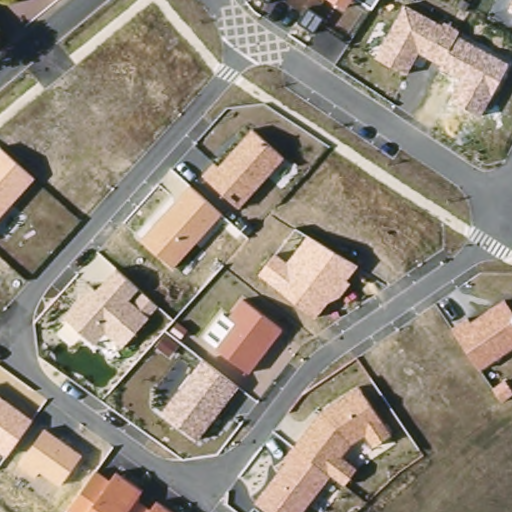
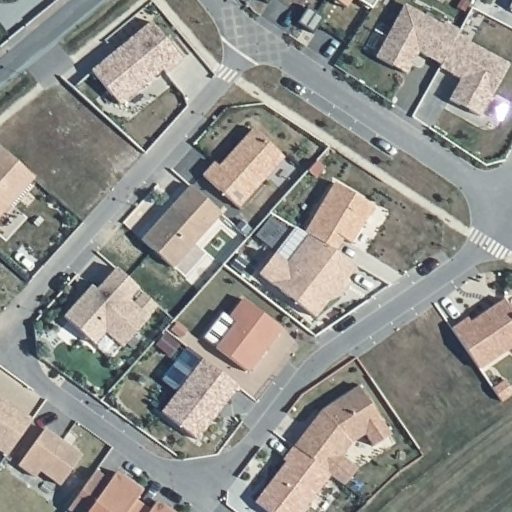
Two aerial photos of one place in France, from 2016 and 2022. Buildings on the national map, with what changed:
unchanged [(327,0),(353,0),(345,11),(327,0)]
unchanged [(375,0),(370,7),(360,0),(375,0)]
unchanged [(512,0),(512,10),(507,7),(512,0)]
unchanged [(460,77),(440,68),(441,64),(420,54),(410,73),(375,58),(402,3),(461,32),(458,36),(509,62),(481,117),(450,99),(460,77)]
new [(114,52),(151,21),(183,60),(167,73),(164,69),(120,105),(91,70),(104,60),(114,52)]
unchanged [(285,157),(239,208),(202,175),(212,162),(220,166),(252,129),(285,157)]
unchanged [(35,177),(0,217),(0,147),(35,177)]
new [(342,238),(335,251),(307,234),(305,232),(334,182),(372,205),(351,243),(342,238)]
unchanged [(190,183),(221,215),(173,269),(141,238),(190,183)]
unchanged [(360,264),(347,280),(351,283),(340,296),(327,302),(315,319),(259,275),(275,253),(286,261),(306,235),(360,264)]
unchanged [(90,285),(94,289),(115,266),(158,306),(121,348),(104,334),(95,344),(62,314),(90,285)]
unchanged [(214,346),(231,322),(225,316),(241,298),(281,328),(247,371),(214,346)]
unchanged [(466,316),(471,321),(501,300),(511,313),(512,313),(512,346),(478,370),(450,327),(466,316)]
unchanged [(202,357),(239,388),(197,440),(163,411),(202,357)]
unchanged [(285,460),(281,456),(319,409),(357,386),(389,433),(369,445),(363,435),(350,442),(339,455),(355,467),(343,483),(330,473),(299,512),(267,512),(255,502),(285,460)]
unchanged [(34,420),(7,458),(0,452),(0,396),(34,420)]
unchanged [(60,485),(43,471),(37,478),(17,463),(44,425),(80,455),(60,485)]
unchanged [(95,468),(110,479),(115,471),(143,489),(136,500),(152,510),(157,501),(174,512),(70,512),(67,510),(95,468)]

